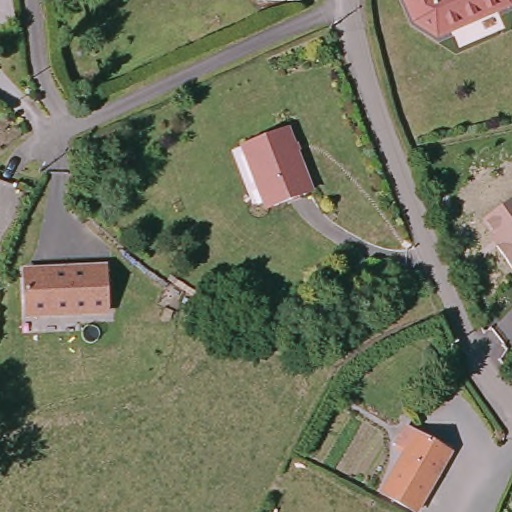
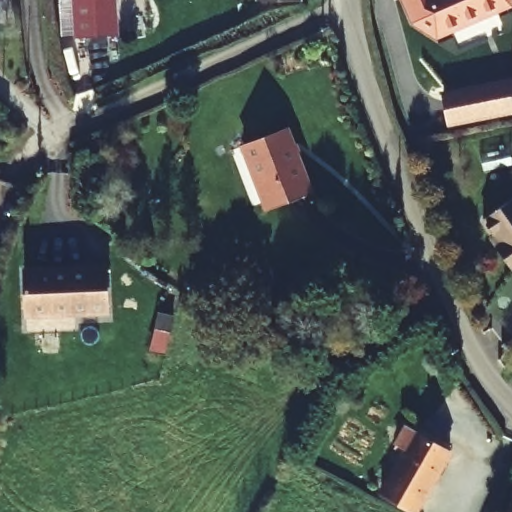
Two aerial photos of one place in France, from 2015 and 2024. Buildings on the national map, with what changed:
new [(72,0),(118,0),(120,35),(74,37),(72,0)]
unchanged [(505,2),(430,32),(408,18),(400,0),(505,0),(505,2)]
new [(447,124),(441,94),(512,80),(512,111),(447,124)]
unchanged [(291,131),(313,187),(267,207),(239,151),(291,131)]
unchanged [(493,243),(497,240),(479,216),(512,194),(512,263),(507,267),(493,243)]
unchanged [(106,262),(109,316),(25,319),(21,267),(106,262)]
unchanged [(396,442),(407,423),(456,452),(421,512),(418,512),(381,492),(408,449),(396,442)]
unchanged [(501,512),(492,512),(512,465),(512,489),(501,512)]

